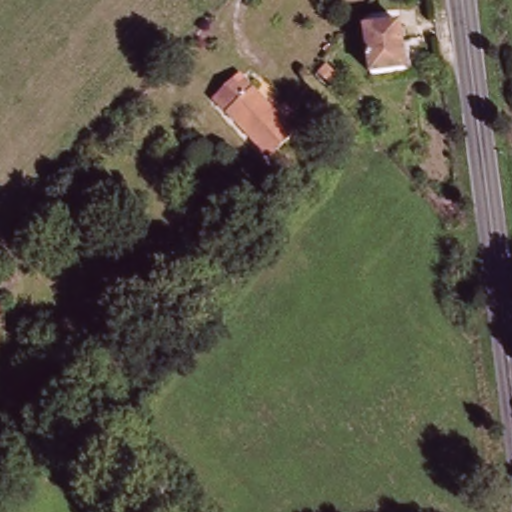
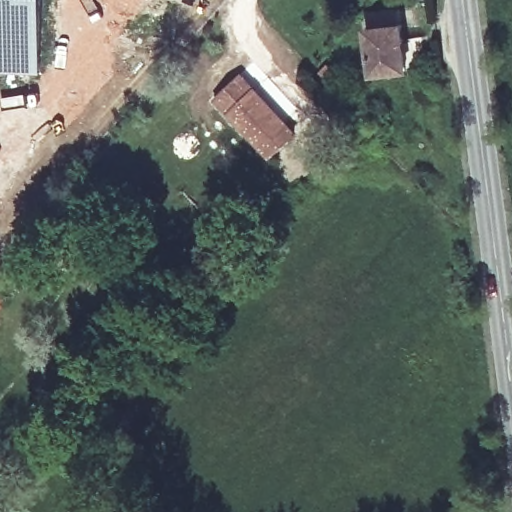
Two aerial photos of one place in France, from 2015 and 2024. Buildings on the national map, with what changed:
new [(33,71),(0,71),(0,0),(33,0),(33,71)]
unchanged [(370,38),(408,33),(413,76),(375,80),(370,38)]
unchanged [(238,76),(297,135),(273,158),(214,100),(238,76)]

